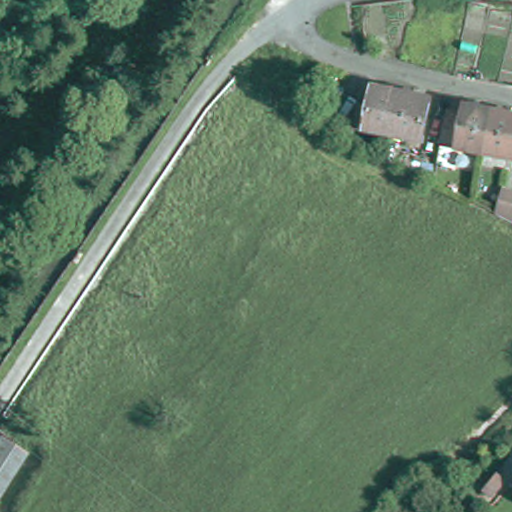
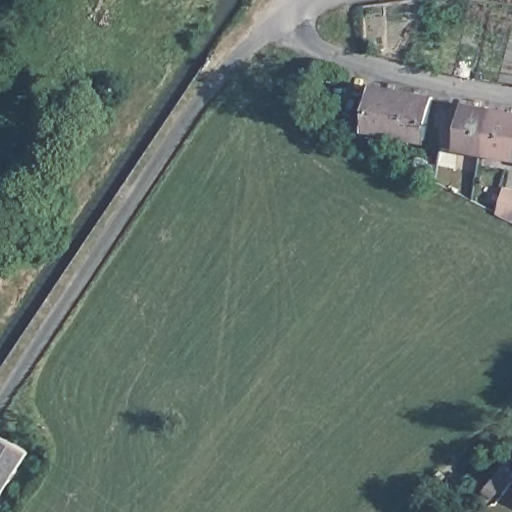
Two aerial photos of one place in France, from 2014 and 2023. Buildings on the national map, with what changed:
unchanged [(359,107),(370,109),(376,85),(405,91),(395,133),(355,125),(359,107)]
unchanged [(433,96),(423,139),(395,133),(405,91),(433,96)]
unchanged [(453,105),(470,109),(472,98),(481,100),(501,103),(491,147),(446,138),(453,105)]
unchanged [(491,147),(501,103),(512,106),(512,152),(491,147)]
unchanged [(504,188),(512,191),(512,219),(498,212),(504,188)]
unchanged [(4,430),(32,447),(0,496),(0,437),(4,430)]

